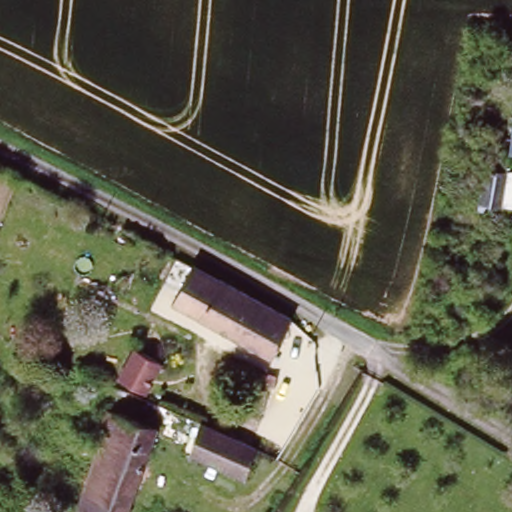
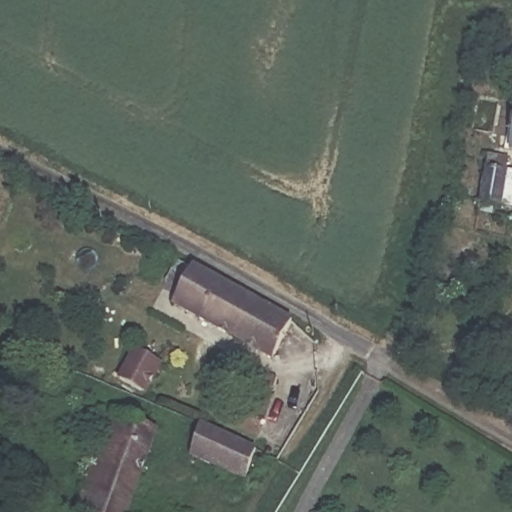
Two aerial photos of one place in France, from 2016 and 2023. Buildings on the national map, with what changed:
unchanged [(512,147),(505,145),(512,107),(512,147)]
unchanged [(512,155),(512,158),(502,204),(482,200),(492,151),(512,155)]
unchanged [(198,268),(290,320),(273,355),(180,303),(198,268)]
unchanged [(141,352),(163,365),(145,393),(123,380),(141,352)]
unchanged [(104,453),(96,450),(111,414),(159,430),(129,512),(83,512),(104,453)]
unchanged [(204,426),(255,448),(245,481),(193,457),(204,426)]

